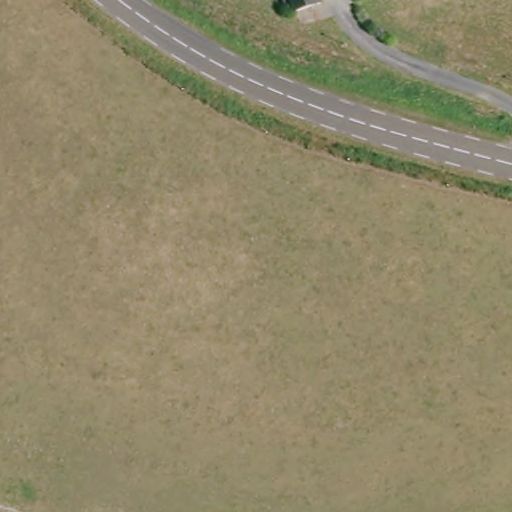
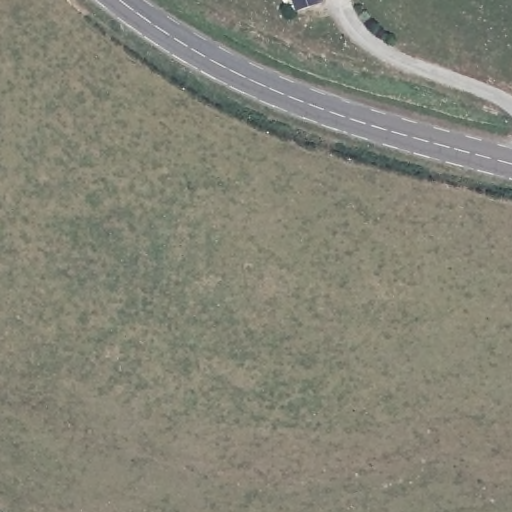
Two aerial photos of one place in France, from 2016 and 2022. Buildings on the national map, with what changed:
unchanged [(301,9),(297,0),(324,0),(301,9)]

